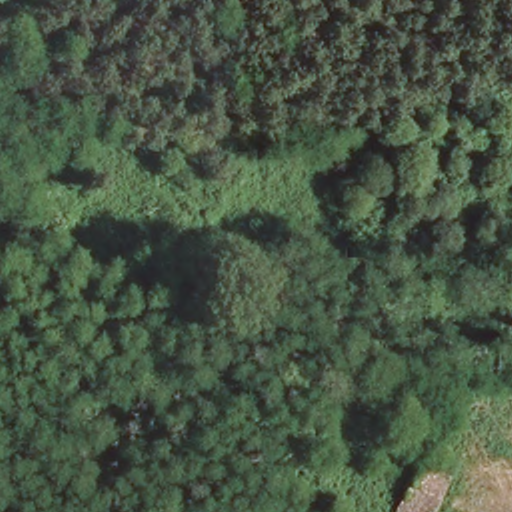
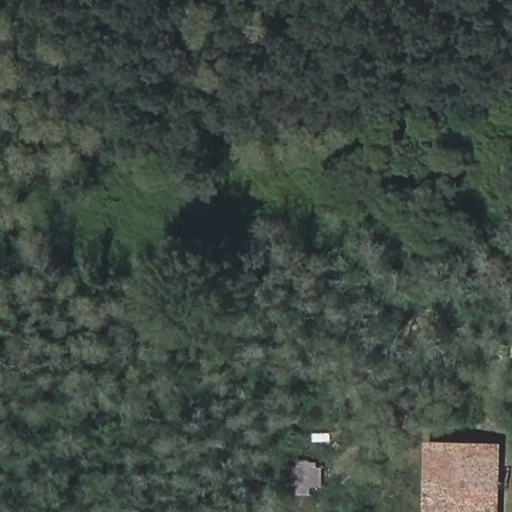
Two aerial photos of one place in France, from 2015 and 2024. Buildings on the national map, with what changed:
new [(500,447),(498,512),(423,512),(426,443),(500,447)]
demolished [(450,468),(428,512),(395,512),(423,455),(450,468)]

